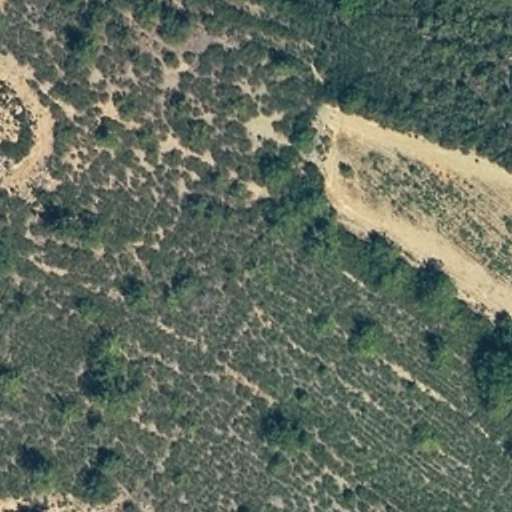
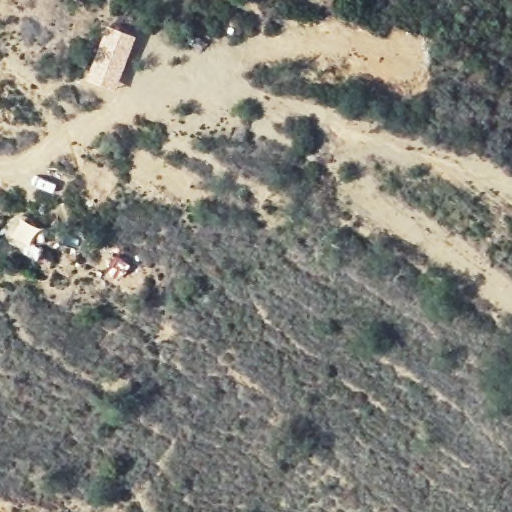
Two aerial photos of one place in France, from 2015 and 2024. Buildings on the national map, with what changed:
new [(137,37),(117,91),(88,80),(108,27),(137,37)]

